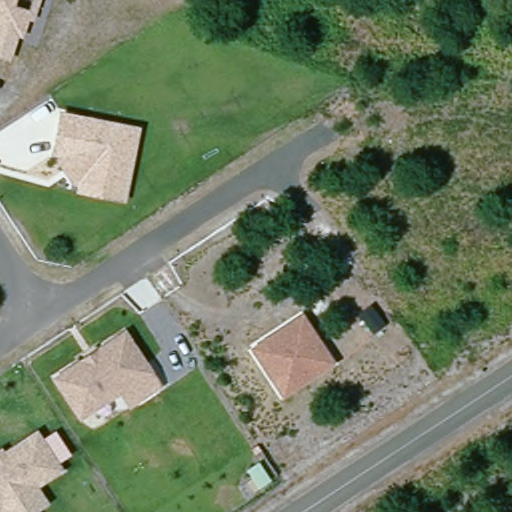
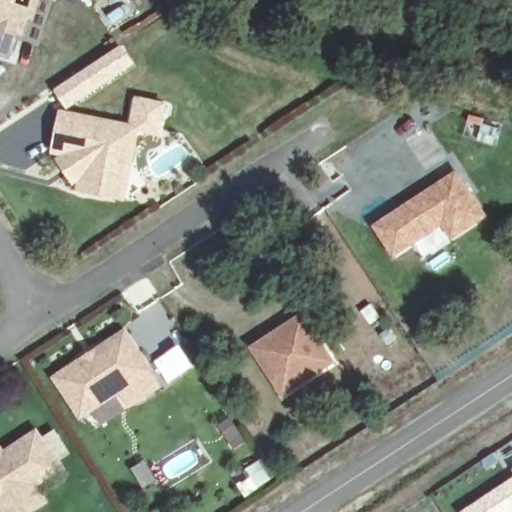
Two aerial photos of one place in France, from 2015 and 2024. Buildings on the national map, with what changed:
unchanged [(12,66),(0,63),(0,0),(34,0),(12,66)]
unchanged [(76,192),(77,187),(57,157),(50,156),(59,110),(141,126),(126,203),(76,192)]
new [(451,239),(442,225),(394,257),(372,225),(459,169),(488,215),(451,239)]
unchanged [(338,363),(283,396),(249,345),(305,313),(338,363)]
unchanged [(164,389),(132,409),(121,392),(76,418),(49,376),(125,328),(164,389)]
unchanged [(40,489),(50,504),(37,512),(2,512),(1,511),(0,512),(0,453),(38,429),(66,471),(40,489)]
new [(459,512),(512,477),(512,512),(459,512)]

